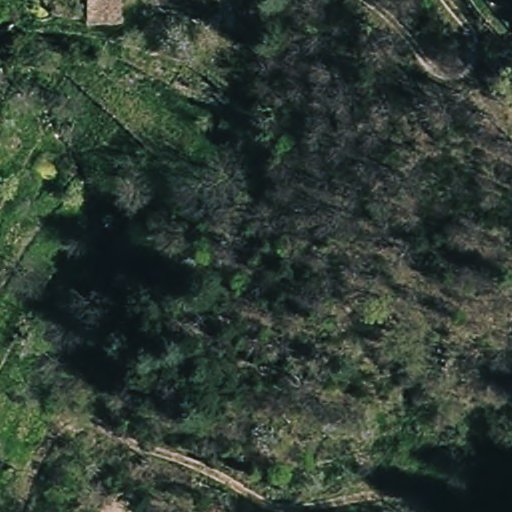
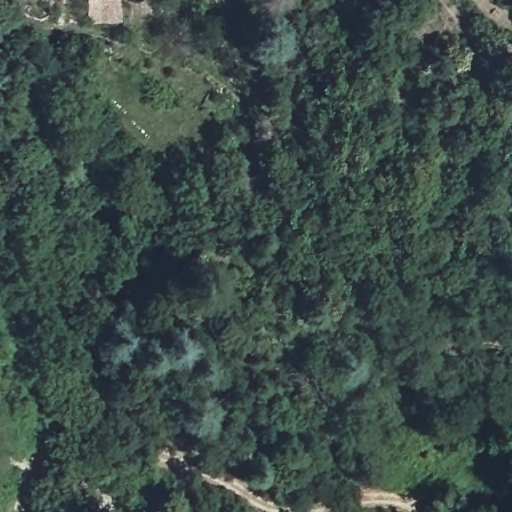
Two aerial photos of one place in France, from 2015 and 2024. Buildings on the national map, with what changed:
unchanged [(119,25),(86,24),(86,0),(118,0),(119,25)]

